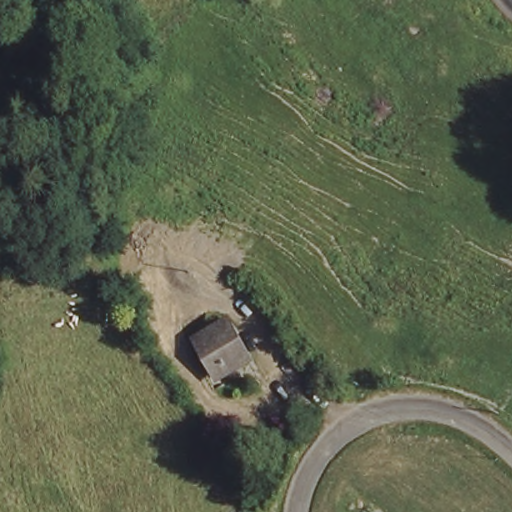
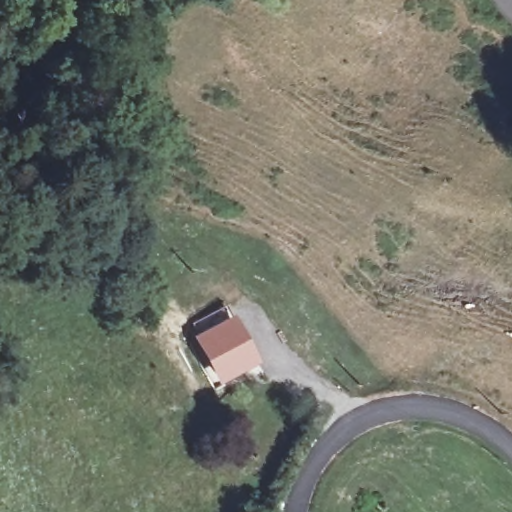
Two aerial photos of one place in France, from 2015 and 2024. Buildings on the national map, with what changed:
unchanged [(220,380),(200,341),(227,328),(247,367),(220,380)]

